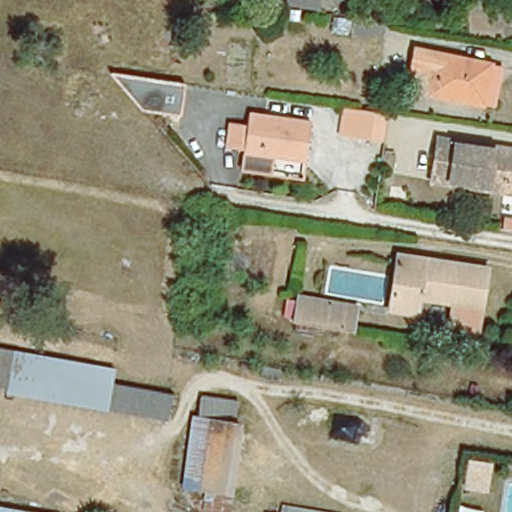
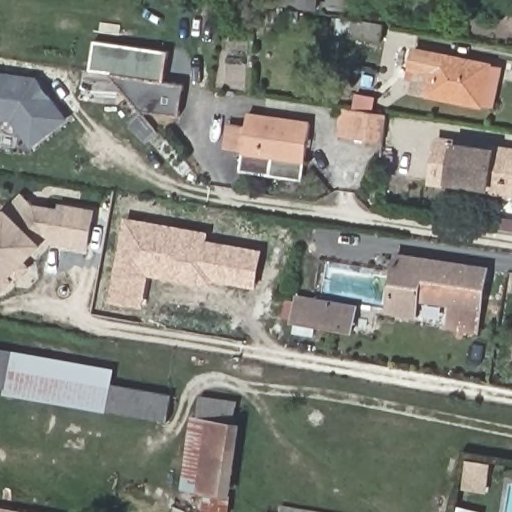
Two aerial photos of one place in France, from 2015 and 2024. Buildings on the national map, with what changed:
unchanged [(284,5),(285,0),(318,0),(318,6),(284,5)]
unchanged [(495,102),(483,100),(483,101),(427,90),(427,89),(418,87),(422,70),(429,71),(434,47),(491,58),(491,60),(504,62),(495,102)]
new [(38,77),(69,118),(32,147),(11,120),(0,118),(0,72),(38,77)]
new [(183,85),(179,115),(141,110),(111,74),(183,85)]
unchanged [(386,141),(343,135),(347,107),(361,110),(389,114),(386,141)]
unchanged [(249,110),(311,119),(306,154),(274,150),(271,170),(241,165),(249,110)]
unchanged [(433,182),(439,139),(511,149),(512,149),(512,193),(505,192),(433,182)]
new [(3,210),(5,211),(18,223),(34,205),(58,210),(58,205),(93,210),(87,245),(45,239),(0,288),(0,214),(3,210)]
new [(257,288),(216,280),(215,287),(151,275),(144,307),(109,302),(125,215),(209,230),(208,240),(264,250),(257,288)]
unchanged [(399,250),(488,265),(479,326),(450,322),(454,300),(420,295),(417,310),(390,306),(399,250)]
unchanged [(362,300),(358,325),(302,316),(302,313),(291,312),(294,297),(305,299),(306,292),(362,300)]
unchanged [(110,365),(108,375),(107,380),(166,391),(162,415),(3,387),(3,382),(0,382),(0,345),(110,365)]
unchanged [(230,423),(236,425),(224,512),(204,512),(200,511),(203,491),(179,488),(188,418),(195,419),(198,398),(198,396),(232,401),(232,405),(230,423)]
new [(466,460),(490,464),(485,492),(461,487),(466,460)]
unchanged [(279,507),(286,508),(313,512),(278,512),(279,507)]

